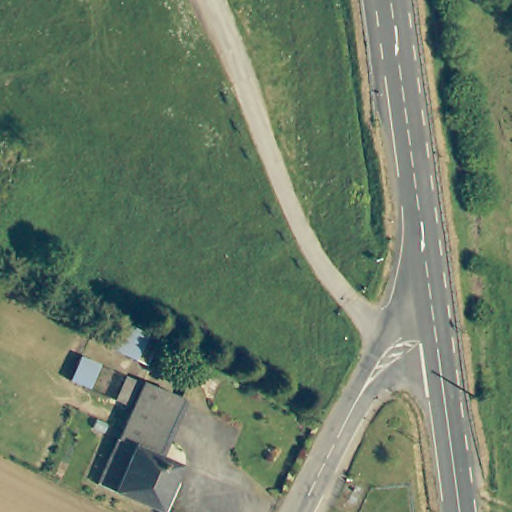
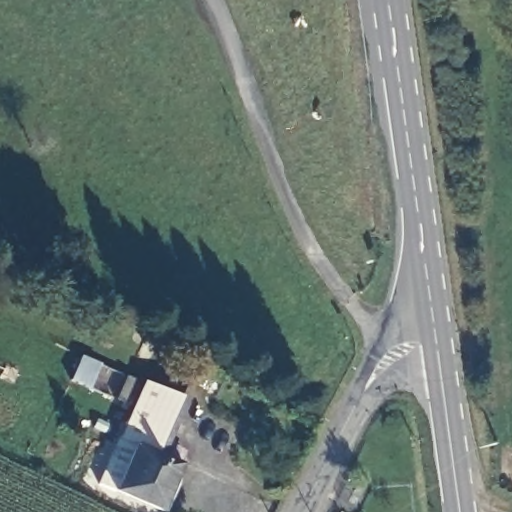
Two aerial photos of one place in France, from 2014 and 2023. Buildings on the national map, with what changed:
unchanged [(115,400),(125,377),(137,382),(127,405),(115,400)]
unchanged [(97,485),(116,438),(117,439),(139,384),(178,401),(155,455),(179,465),(160,511),(97,485)]

